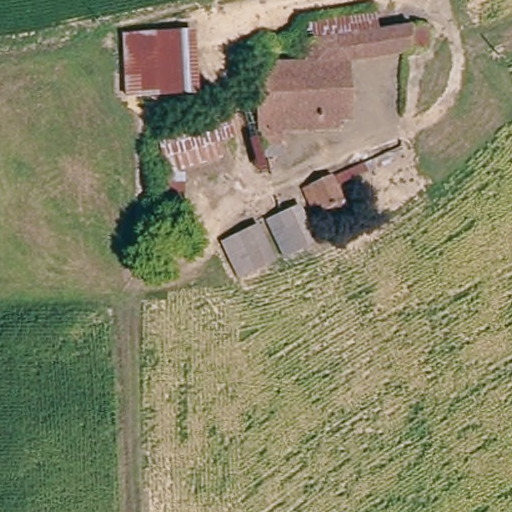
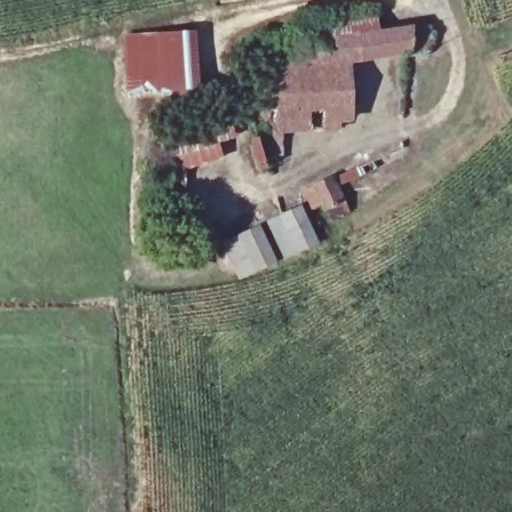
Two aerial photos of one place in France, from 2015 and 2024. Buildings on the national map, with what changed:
unchanged [(194,88),(169,93),(136,100),(127,56),(124,43),(179,29),(186,54),(194,88)]
unchanged [(402,53),(345,59),(346,111),(331,113),(332,124),(279,130),(279,142),(259,146),(249,48),(264,46),(266,60),(299,57),(299,43),(338,39),(402,29),(402,53)]
unchanged [(166,171),(154,135),(226,112),(234,136),(218,140),(222,156),(184,168),(182,208),(160,208),(159,172),(166,171)]
unchanged [(334,209),(327,212),(332,224),(320,230),(313,213),(304,216),(296,198),(322,187),(334,209)]
unchanged [(288,214),(305,250),(275,264),(258,228),(288,214)]
unchanged [(253,223),(271,259),(236,275),(219,240),(253,223)]

